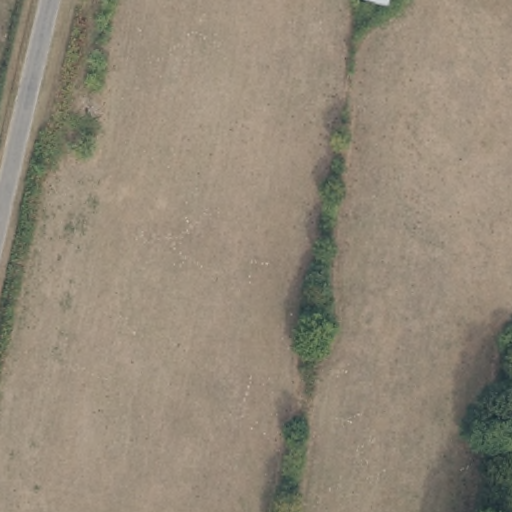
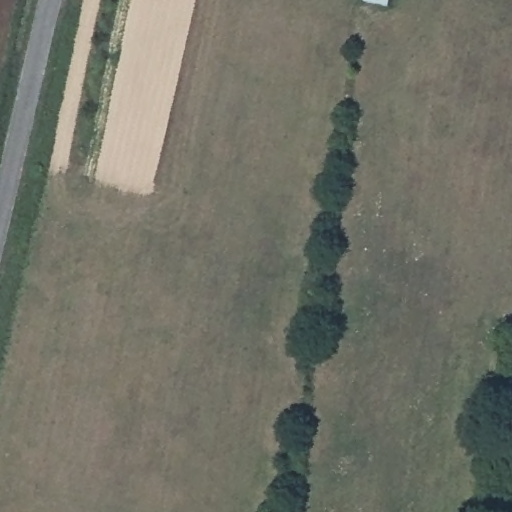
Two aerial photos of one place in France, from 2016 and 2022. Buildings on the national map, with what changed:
unchanged [(390,9),(362,4),(363,0),(391,0),(390,9)]

